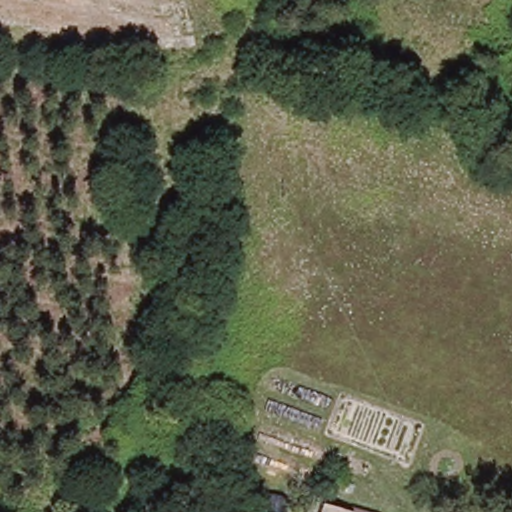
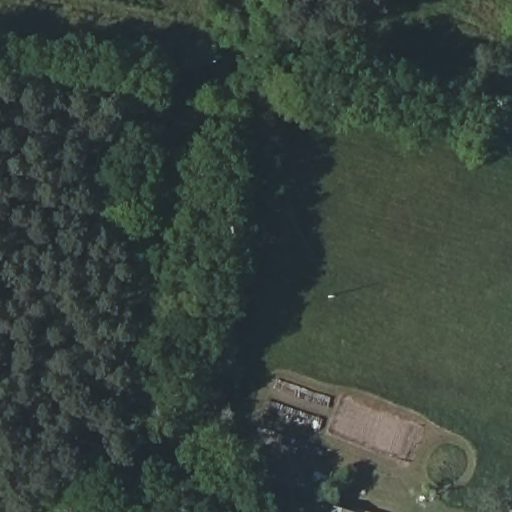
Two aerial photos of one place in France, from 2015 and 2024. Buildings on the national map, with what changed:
unchanged [(335,512),(325,512),(326,509),(335,512)]

